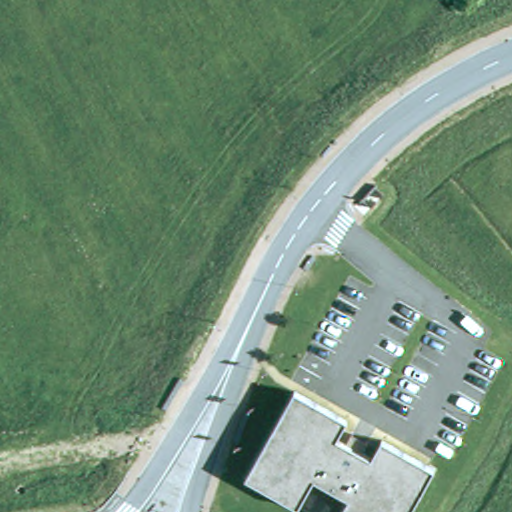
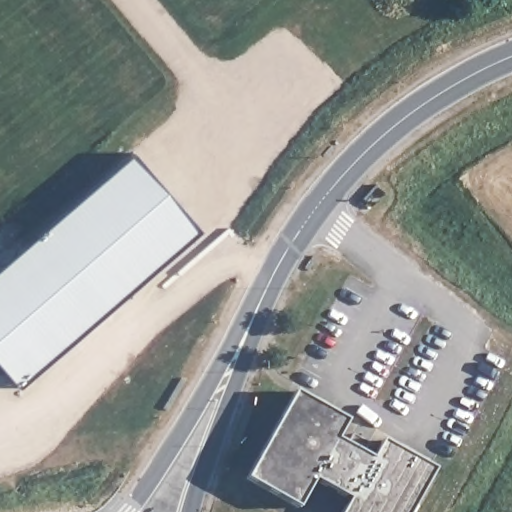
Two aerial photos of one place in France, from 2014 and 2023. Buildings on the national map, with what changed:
new [(137,152),(205,230),(25,390),(0,362),(0,272),(137,152)]
unchanged [(335,435),(372,456),(383,438),(437,468),(411,512),(340,512),(350,495),(315,475),(300,506),(245,475),(295,390),(348,417),(335,435)]

